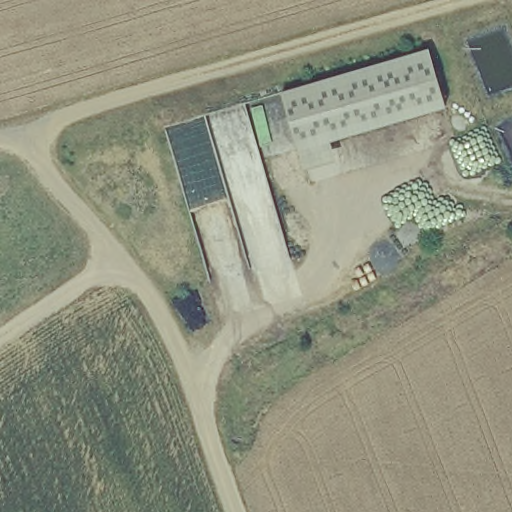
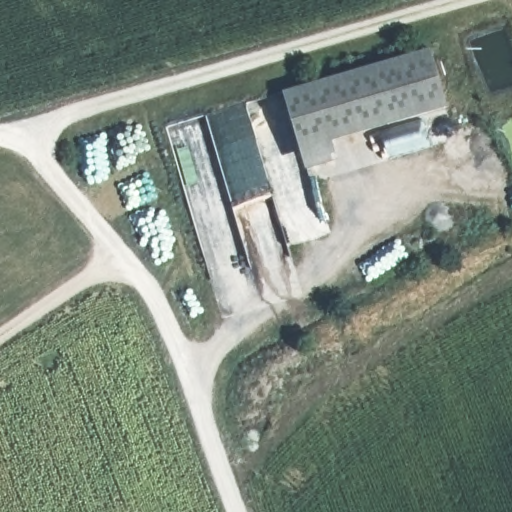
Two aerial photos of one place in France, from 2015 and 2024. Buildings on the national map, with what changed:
unchanged [(334,139),(340,157),(307,167),(285,91),(435,46),(452,105),(334,139)]

